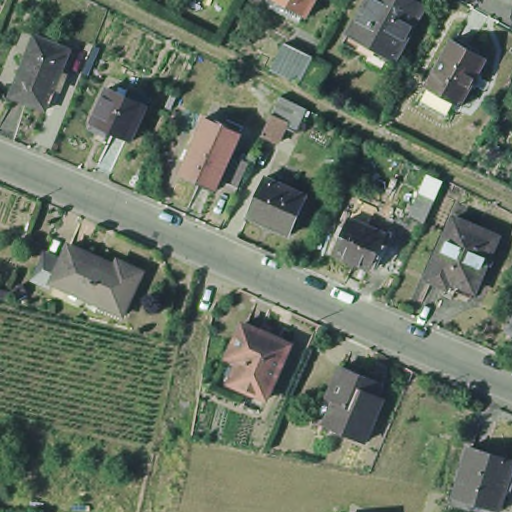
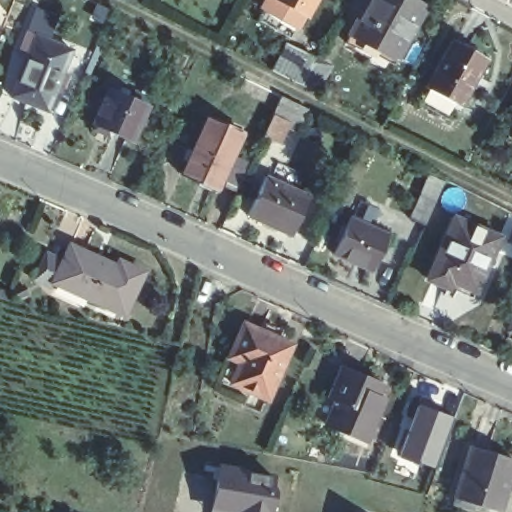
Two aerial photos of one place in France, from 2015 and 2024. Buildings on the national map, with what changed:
unchanged [(314,12),(312,11),(308,17),(280,2),(281,0),(321,0),(314,12)]
unchanged [(368,0),(418,0),(426,5),(390,67),(364,52),(366,47),(346,37),(368,0)]
unchanged [(28,51),(20,46),(28,28),(71,46),(63,69),(70,72),(64,84),(57,81),(47,106),(12,92),(28,51)]
unchanged [(437,80),(434,78),(460,31),(493,51),(484,67),(494,72),(489,81),(480,75),(467,97),(460,94),(456,101),(433,88),(437,80)]
unchanged [(282,42),(310,55),(295,84),(267,71),(282,42)]
unchanged [(313,56),(327,62),(310,92),(297,85),(313,56)]
unchanged [(115,84),(154,102),(137,137),(115,126),(113,132),(100,125),(102,120),(99,118),(115,84)]
unchanged [(276,97),(302,111),(291,133),(281,128),(273,145),(257,137),(276,97)]
unchanged [(200,131),(233,147),(216,184),(182,169),(200,131)]
unchanged [(236,152),(250,159),(238,184),(224,177),(236,152)]
unchanged [(267,177),(307,197),(290,234),(248,215),(267,177)]
unchanged [(417,196),(432,202),(420,227),(405,220),(417,196)]
unchanged [(360,205),(373,212),(366,218),(393,231),(375,267),(337,250),(360,205)]
unchanged [(430,272),(457,214),(500,234),(495,247),(500,250),(494,265),(487,262),(483,272),(474,295),(459,288),(456,295),(445,291),(448,284),(429,276),(430,272)]
unchanged [(512,228),(512,237),(508,235),(512,228)]
unchanged [(57,272),(72,243),(72,244),(118,264),(122,266),(120,272),(105,303),(55,279),(57,272)]
unchanged [(118,264),(120,260),(121,258),(131,263),(144,272),(125,312),(105,303),(120,272),(122,266),(118,264)]
unchanged [(512,317),(512,322),(510,321),(512,317)]
unchanged [(230,352),(245,319),(262,327),(266,318),(285,327),(284,328),(287,330),(285,337),(293,341),(268,395),(232,379),(221,375),(230,352)]
unchanged [(338,397),(330,392),(344,362),(383,378),(378,390),(385,393),(367,436),(328,419),(338,397)]
new [(417,406),(452,418),(434,471),(398,456),(417,406)]
unchanged [(473,442),(512,454),(512,474),(502,507),(475,498),(474,503),(458,499),(460,493),(457,492),(473,442)]
new [(280,477),(273,512),(214,512),(210,512),(217,466),(280,477)]

